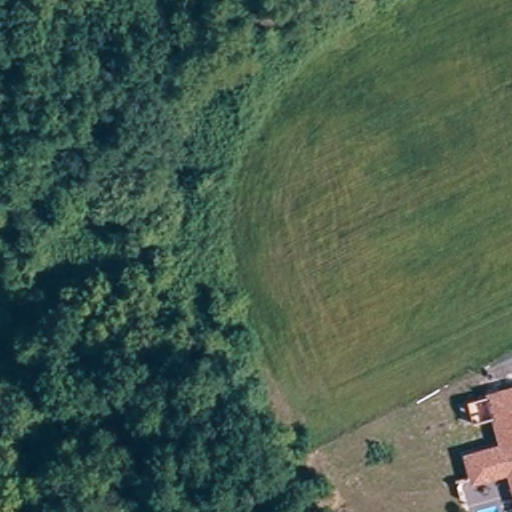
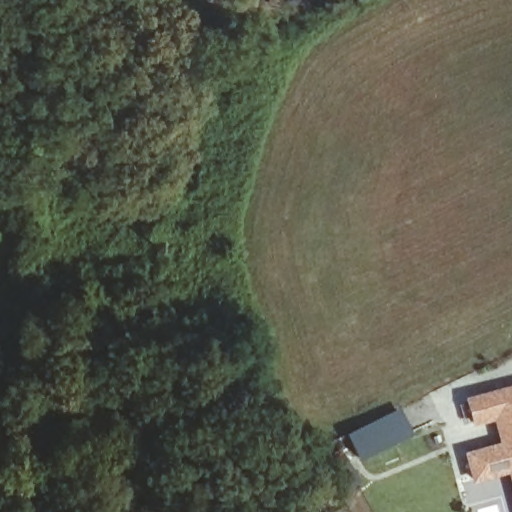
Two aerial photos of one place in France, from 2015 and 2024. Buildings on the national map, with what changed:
unchanged [(470,484),(461,453),(497,443),(490,418),(472,423),(467,401),(485,396),(485,392),(512,386),(512,497),(506,476),(470,484)]
new [(397,408),(410,435),(359,462),(345,436),(397,408)]

